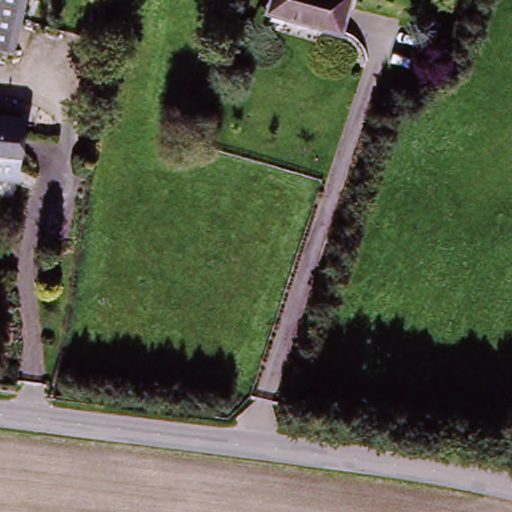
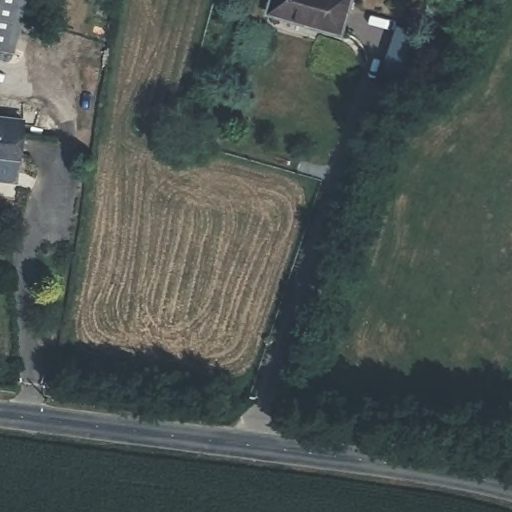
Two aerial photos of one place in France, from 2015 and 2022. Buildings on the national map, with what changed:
unchanged [(28,0),(16,51),(0,48),(0,0),(28,0)]
unchanged [(272,16),(277,0),(350,0),(338,37),(272,16)]
unchanged [(0,180),(0,122),(24,125),(20,164),(17,182),(0,180)]

